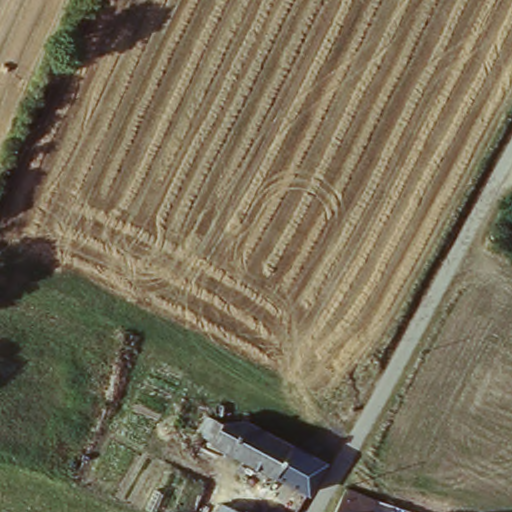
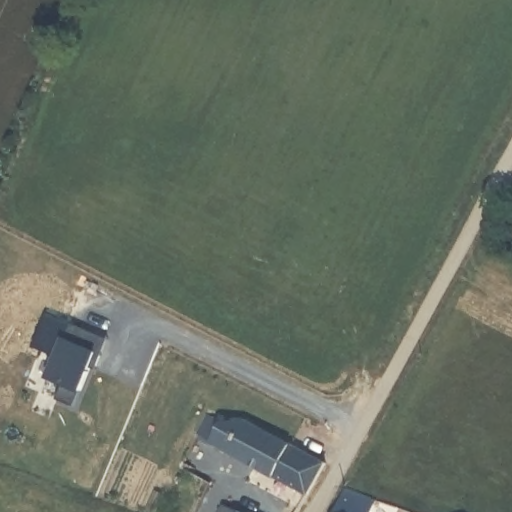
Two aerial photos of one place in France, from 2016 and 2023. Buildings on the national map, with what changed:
new [(58,398),(65,385),(49,377),(71,325),(106,340),(95,368),(91,367),(74,405),(58,398)]
demolished [(78,394),(57,385),(60,377),(49,373),(52,365),(62,370),(66,360),(90,370),(78,394)]
unchanged [(281,500),(296,471),(205,427),(213,408),(229,416),(256,421),(330,453),(316,481),(299,508),(281,500)]
unchanged [(330,512),(343,483),(373,498),(372,502),(368,512),(330,512)]
unchanged [(242,512),(237,512),(237,510),(242,512)]

